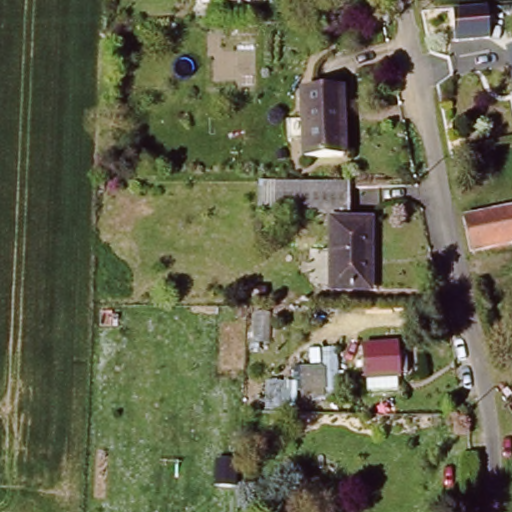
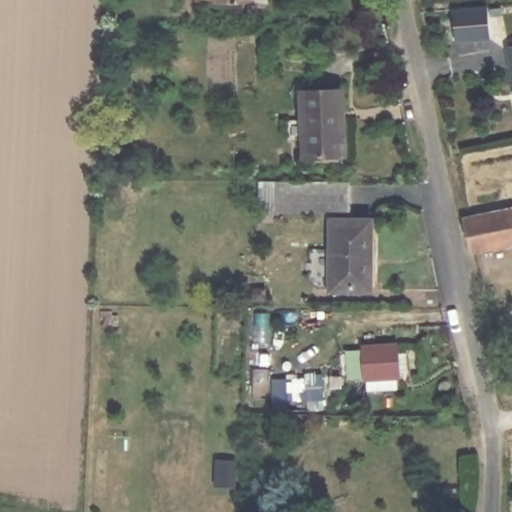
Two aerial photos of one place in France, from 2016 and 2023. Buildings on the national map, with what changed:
unchanged [(237,1),(232,5),(228,5),(224,1),(224,0),(238,0),(237,1)]
unchanged [(490,13),(490,17),(492,42),(455,44),(453,21),(453,17),(490,13)]
unchanged [(512,50),(512,85),(505,51),(512,50)]
unchanged [(345,83),(347,156),(298,159),(297,86),(345,83)]
unchanged [(470,259),(464,225),(512,215),(512,250),(470,259)]
unchanged [(377,222),(376,286),(337,286),(337,222),(377,222)]
unchanged [(512,289),(512,327),(490,331),(482,294),(512,289)]
unchanged [(400,335),(405,377),(362,380),(360,338),(400,335)]

